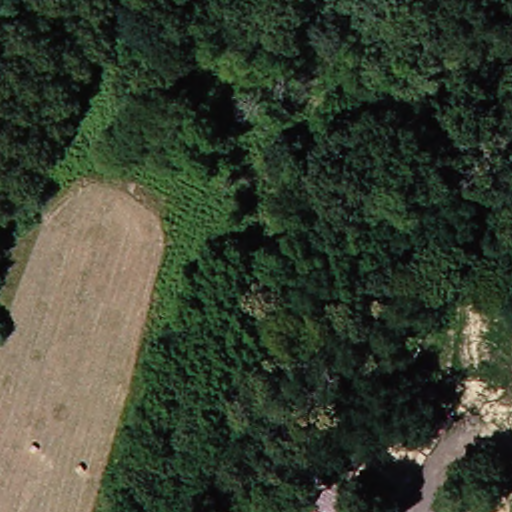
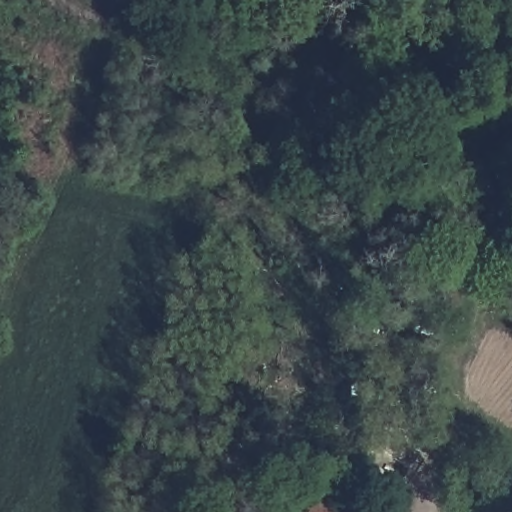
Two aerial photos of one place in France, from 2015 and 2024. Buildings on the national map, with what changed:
unchanged [(330,512),(309,512),(315,502),(330,512)]

